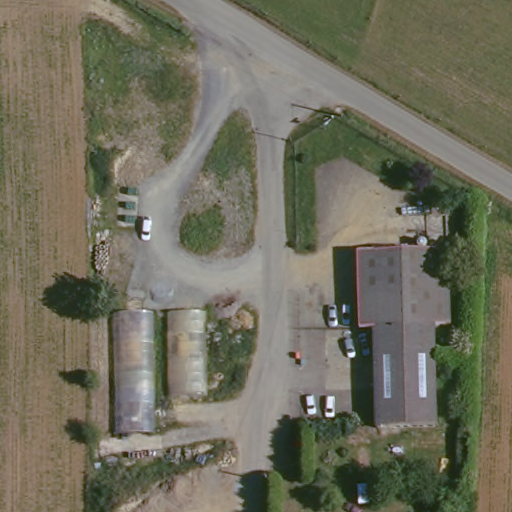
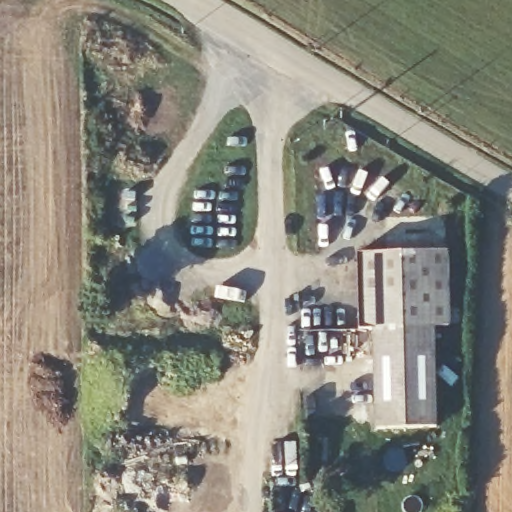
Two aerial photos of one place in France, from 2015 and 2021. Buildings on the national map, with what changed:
unchanged [(373,428),(370,332),(355,331),(353,254),(442,253),(445,328),(428,330),(432,419),(432,427),(409,428),(373,428)]
demolished [(149,442),(113,442),(113,316),(148,315),(149,442)]
demolished [(202,392),(167,392),(169,317),(206,317),(202,392)]

